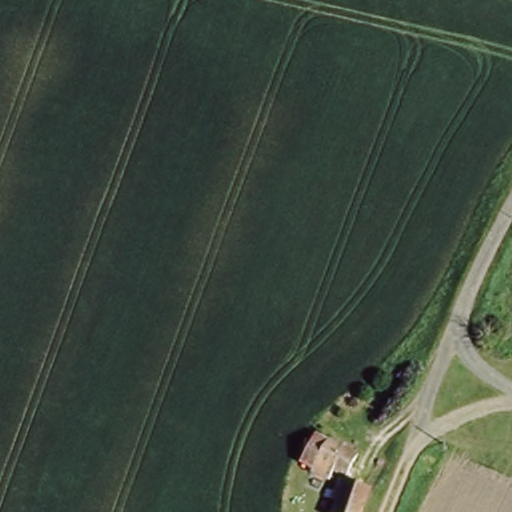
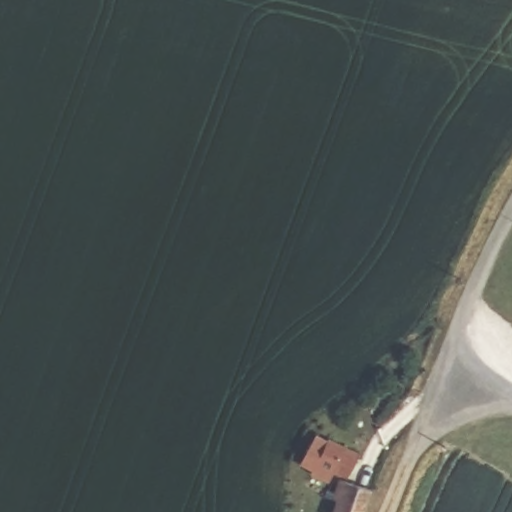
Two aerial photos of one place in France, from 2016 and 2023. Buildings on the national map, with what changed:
unchanged [(332,477),(302,464),(313,436),(328,442),(329,440),(359,452),(348,479),(339,475),(337,479),(332,477)]
unchanged [(371,493),(363,512),(331,512),(334,504),(322,499),(332,477),(337,479),(371,493)]

